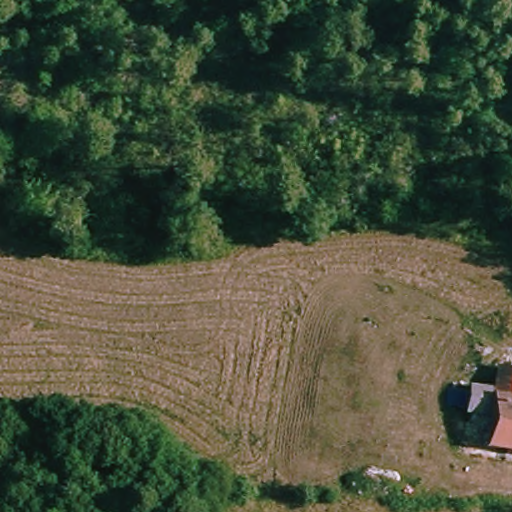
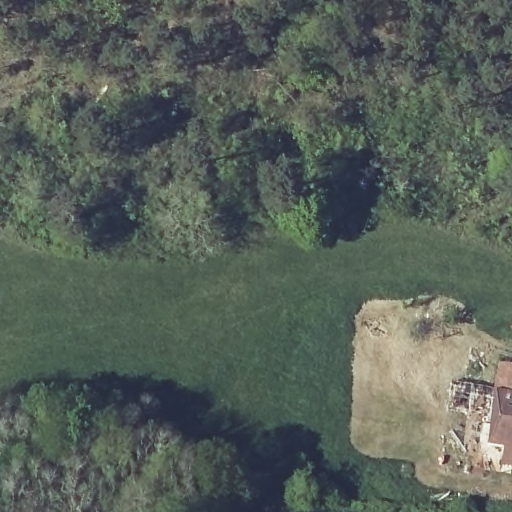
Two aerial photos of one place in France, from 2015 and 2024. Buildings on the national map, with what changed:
unchanged [(491,445),(498,393),(512,395),(512,448),(491,445)]

